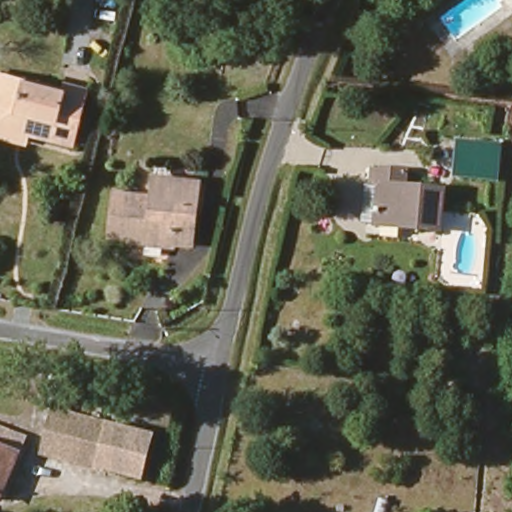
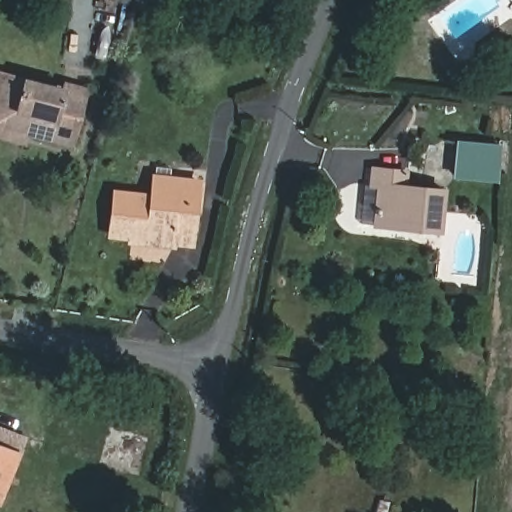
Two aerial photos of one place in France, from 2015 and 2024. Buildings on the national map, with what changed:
unchanged [(2,70),(11,73),(0,104),(0,76),(2,70)]
unchanged [(0,121),(0,104),(11,73),(50,89),(49,95),(63,100),(66,90),(90,99),(80,128),(75,126),(67,147),(32,134),(0,121)]
unchanged [(27,147),(0,136),(0,121),(32,134),(27,147)]
unchanged [(457,176),(459,144),(496,145),(494,177),(457,176)]
unchanged [(376,222),(380,190),(373,189),(373,172),(408,172),(407,188),(448,188),(444,231),(415,230),(376,230),(376,222)]
unchanged [(176,245),(113,243),(118,188),(166,190),(166,181),(196,182),(195,205),(194,246),(176,245)]
demolished [(42,452),(55,413),(151,436),(138,476),(42,452)]
unchanged [(29,433),(5,498),(0,496),(0,423),(29,433)]

